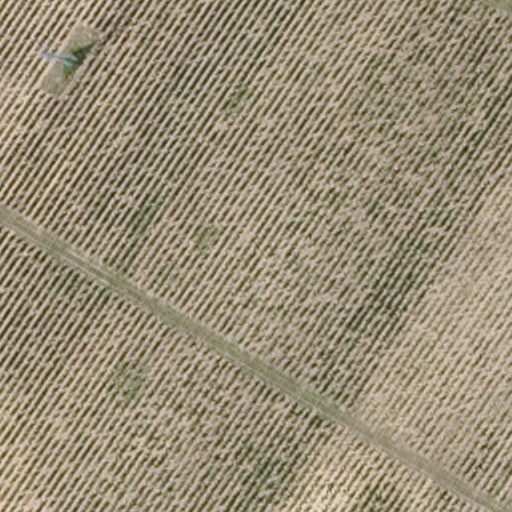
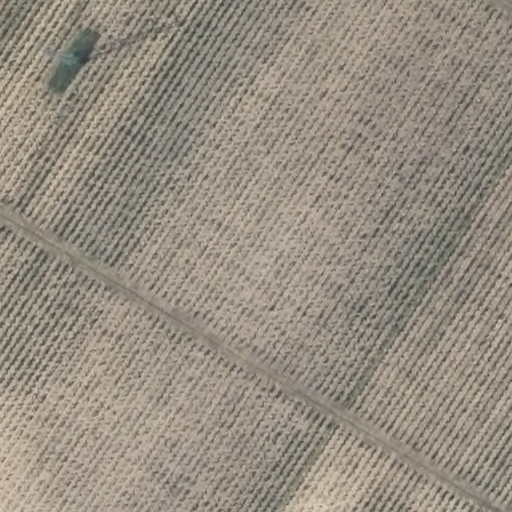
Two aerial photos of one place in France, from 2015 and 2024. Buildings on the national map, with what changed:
[]

